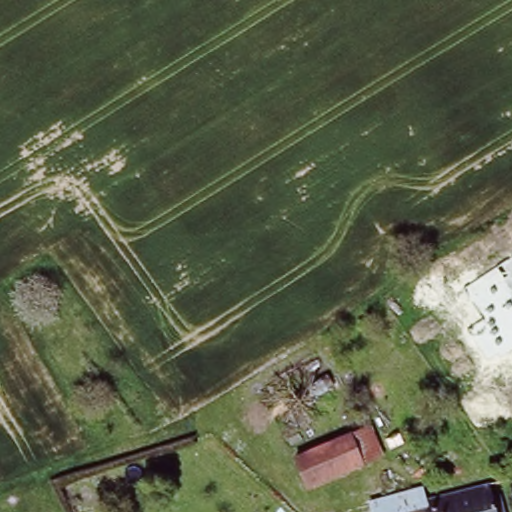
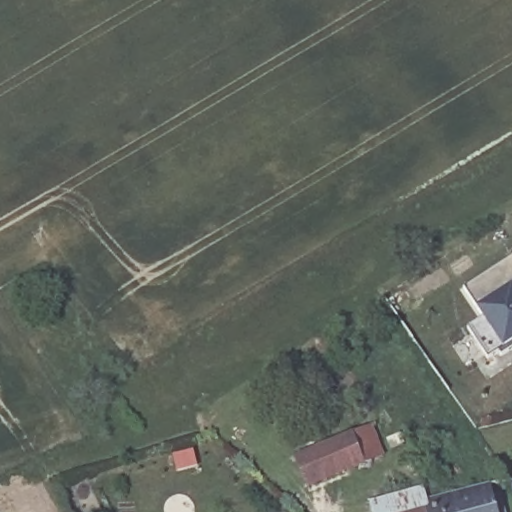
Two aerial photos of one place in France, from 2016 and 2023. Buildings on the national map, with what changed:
new [(498,351),(487,358),(468,330),(484,318),(478,311),(464,288),(512,258),(512,349),(502,356),(498,351)]
unchanged [(356,433),(366,461),(336,472),(309,482),(299,453),(322,444),(356,433)]
unchanged [(423,484),(426,503),(493,486),(498,512),(365,512),(361,497),(423,484)]

